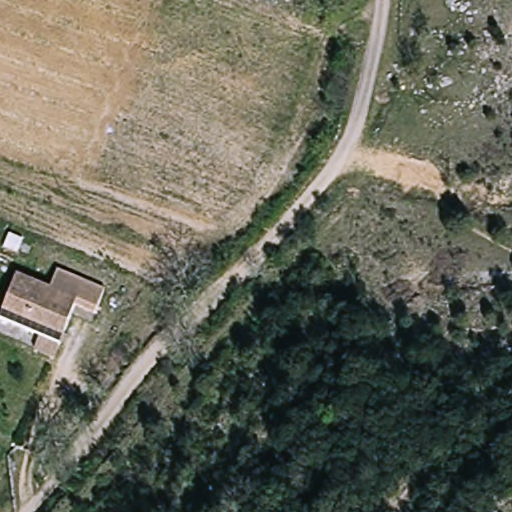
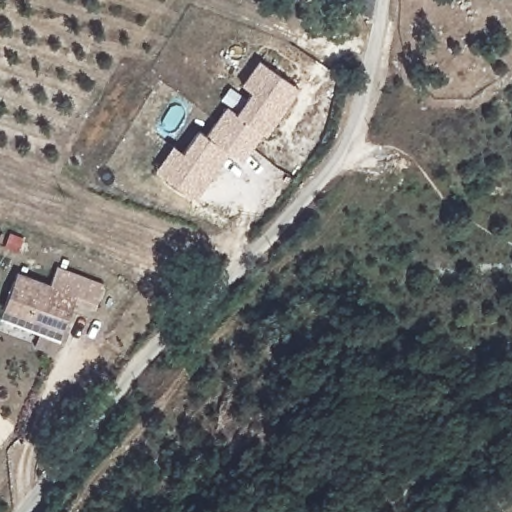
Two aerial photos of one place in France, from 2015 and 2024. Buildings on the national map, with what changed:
new [(193,201),(169,185),(159,178),(175,153),(186,160),(201,138),(209,143),(229,113),(239,120),(254,98),(244,91),(260,67),(294,90),(300,94),(296,100),(268,141),(265,139),(255,154),(245,168),(237,162),(231,158),(203,199),(199,205),(193,201)]
unchanged [(51,330),(29,322),(5,314),(9,303),(23,266),(54,277),(59,262),(114,280),(106,304),(81,296),(70,325),(66,335),(51,330)]

